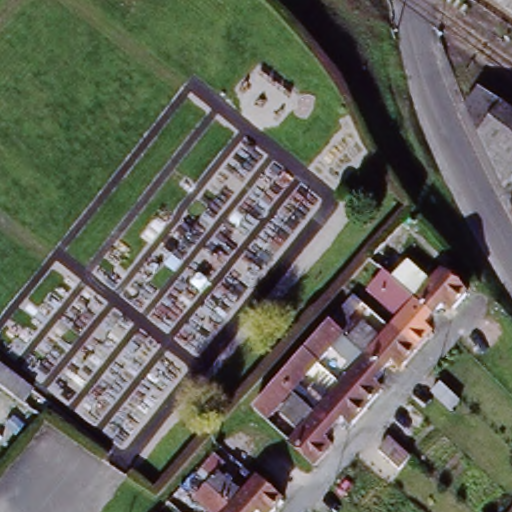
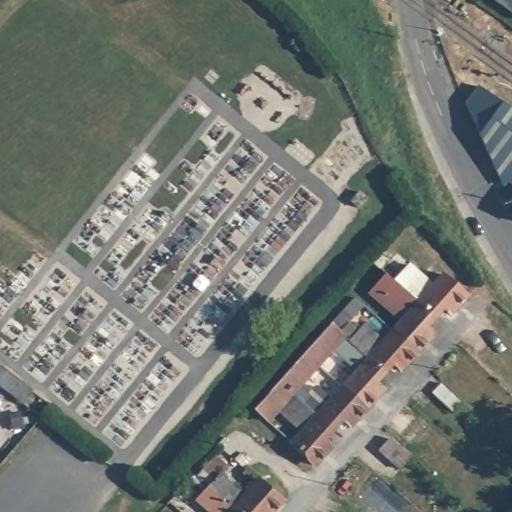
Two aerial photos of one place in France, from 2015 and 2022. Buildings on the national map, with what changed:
unchanged [(512,0),(512,13),(495,0),(512,0)]
unchanged [(464,104),(479,91),(489,98),(512,116),(512,195),(504,190),(464,104)]
unchanged [(414,351),(389,329),(398,318),(368,290),(384,272),(393,281),(396,277),(400,281),(407,274),(424,289),(439,272),(464,295),(451,310),(444,302),(431,316),(418,330),(426,337),(414,351)]
unchanged [(278,380),(303,351),(328,322),(351,295),(361,303),(347,319),(355,327),(361,320),(381,337),(389,329),(414,351),(401,365),(394,358),(381,373),(369,386),(376,393),(364,407),(339,384),(364,356),(341,336),(316,364),(292,392),(268,419),(254,407),(278,380)]
unchanged [(0,389),(0,364),(34,392),(23,406),(0,389)]
unchanged [(326,449),(315,461),(289,438),(298,429),(278,412),(294,394),(314,412),(339,384),(364,407),(354,418),(351,421),(343,414),(331,427),(319,441),(326,449)]
unchanged [(442,385),(461,402),(451,412),(433,395),(442,385)]
unchanged [(412,460),(403,470),(383,452),(392,442),(412,460)]
unchanged [(192,497),(206,482),(194,472),(214,450),(225,460),(217,469),(243,492),(256,477),(260,480),(281,499),(270,512),(266,512),(260,507),(255,512),(209,512),(192,497)]

